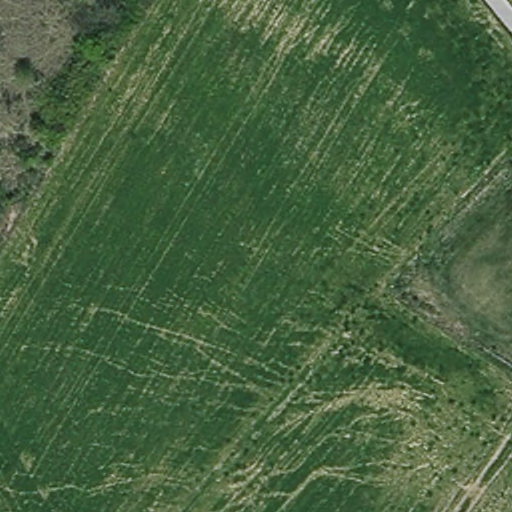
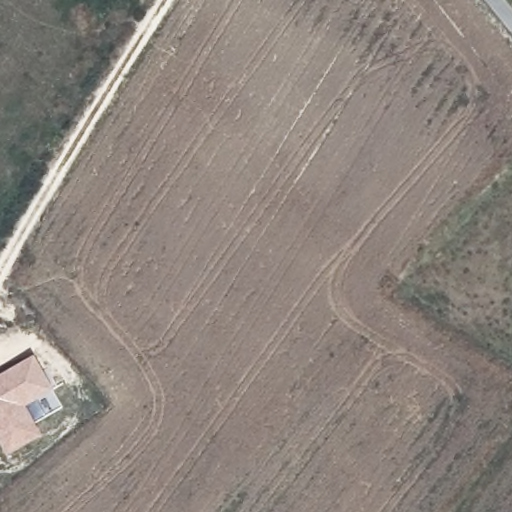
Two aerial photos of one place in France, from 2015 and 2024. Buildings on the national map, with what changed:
new [(27,408),(43,437),(8,457),(0,442),(0,376),(35,356),(55,391),(27,408)]

